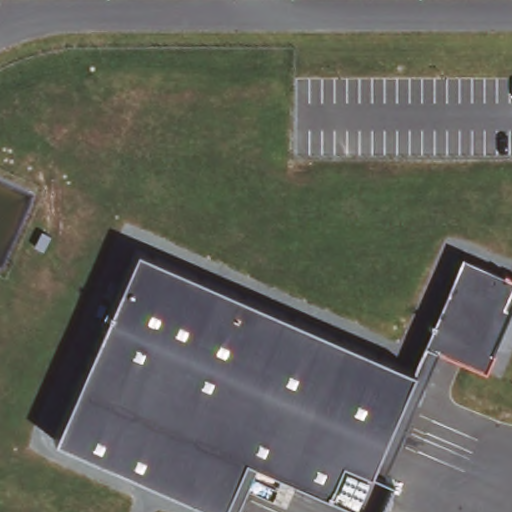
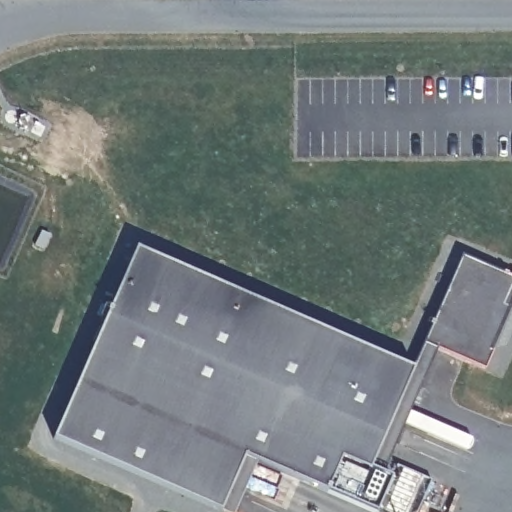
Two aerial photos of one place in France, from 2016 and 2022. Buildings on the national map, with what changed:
unchanged [(466,254),(512,275),(512,311),(487,367),(438,347),(382,471),(392,476),(377,512),(254,459),(234,512),(227,512),(222,509),(55,437),(137,248),(413,368),(466,254)]

